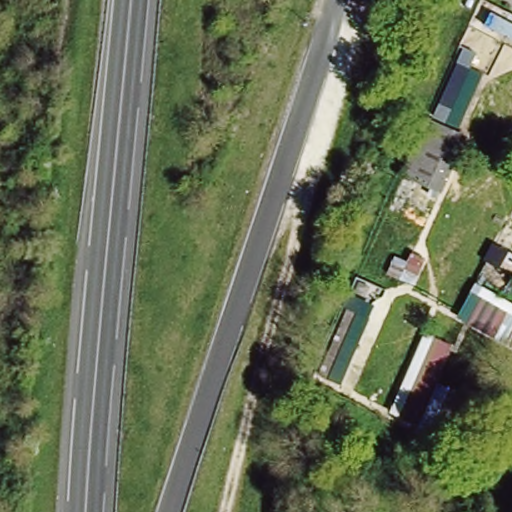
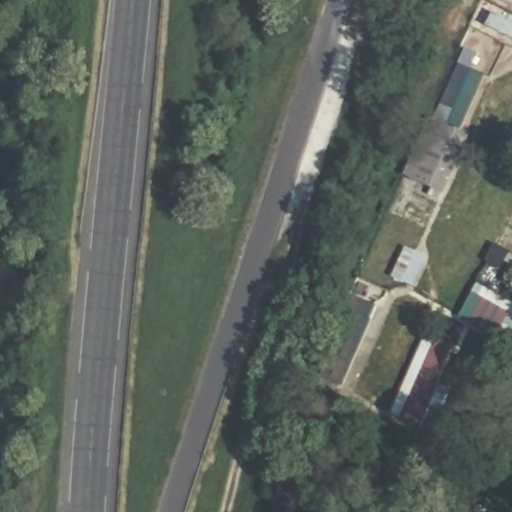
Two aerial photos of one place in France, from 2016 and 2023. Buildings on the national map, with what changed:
unchanged [(491,12),(512,23),(512,40),(485,27),(491,12)]
unchanged [(464,46),(477,55),(470,69),(479,73),(461,112),(454,128),(434,119),(464,46)]
unchanged [(428,117),(460,131),(435,186),(404,172),(428,117)]
unchanged [(395,256),(407,262),(405,268),(416,273),(412,285),(400,280),(388,275),(395,256)]
unchanged [(463,316),(478,286),(512,306),(512,344),(463,316)]
unchanged [(330,376),(321,372),(350,305),(359,308),(330,376)]
unchanged [(419,422),(415,429),(389,416),(425,336),(452,347),(439,379),(449,383),(428,427),(419,422)]

